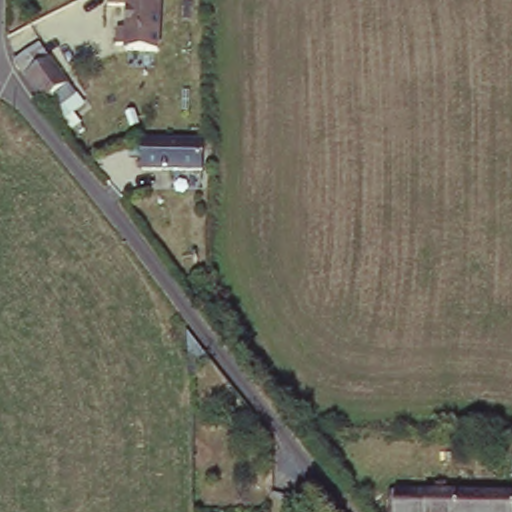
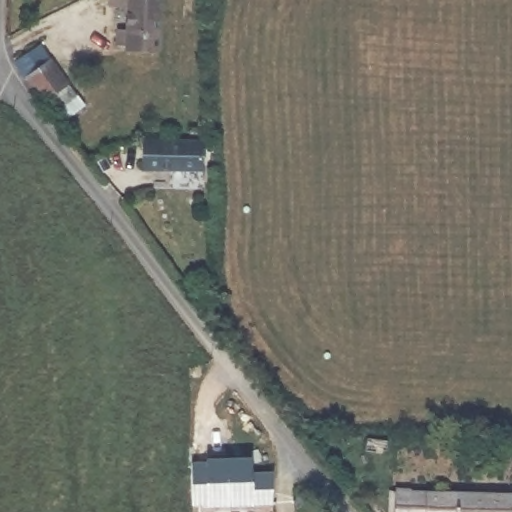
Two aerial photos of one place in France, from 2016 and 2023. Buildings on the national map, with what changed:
unchanged [(126,44),(126,1),(107,0),(160,0),(159,45),(126,44)]
unchanged [(39,45),(68,83),(44,102),(15,64),(39,45)]
unchanged [(201,140),(201,170),(142,170),(142,140),(201,140)]
new [(271,472),(272,504),(194,507),(192,461),(251,458),(251,473),(271,472)]
unchanged [(510,512),(415,512),(415,492),(512,488),(512,496),(510,512)]

